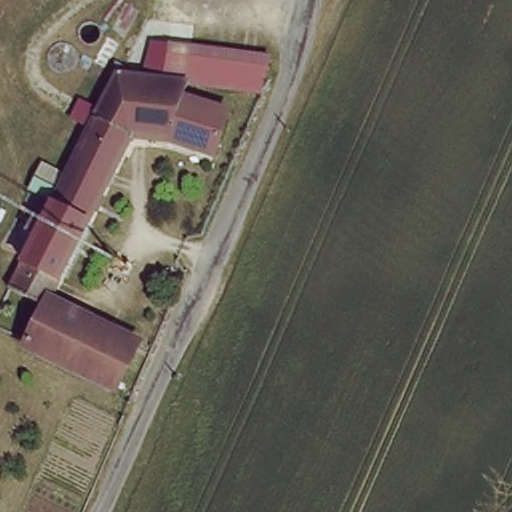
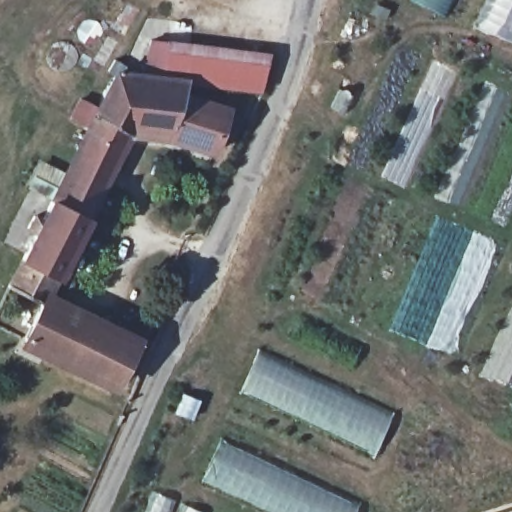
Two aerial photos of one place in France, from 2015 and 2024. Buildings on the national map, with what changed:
new [(441,15),(412,0),(449,0),(441,15)]
new [(512,21),(512,43),(473,26),(483,7),(512,21)]
unchanged [(168,56),(272,68),(263,89),(193,80),(167,76),(168,56)]
unchanged [(230,110),(218,154),(134,130),(133,133),(93,115),(115,72),(109,70),(115,59),(134,65),(132,72),(167,76),(193,80),(183,100),(230,110)]
unchanged [(60,276),(22,258),(35,231),(29,227),(34,215),(42,218),(93,115),(133,133),(60,276)]
unchanged [(46,303),(8,286),(22,258),(60,276),(46,303)]
unchanged [(138,341),(118,385),(27,340),(46,303),(138,341)]
new [(257,351),(390,414),(373,456),(238,391),(257,351)]
new [(358,503),(355,512),(268,512),(200,480),(219,440),(358,503)]
new [(199,512),(144,512),(152,492),(199,512)]

